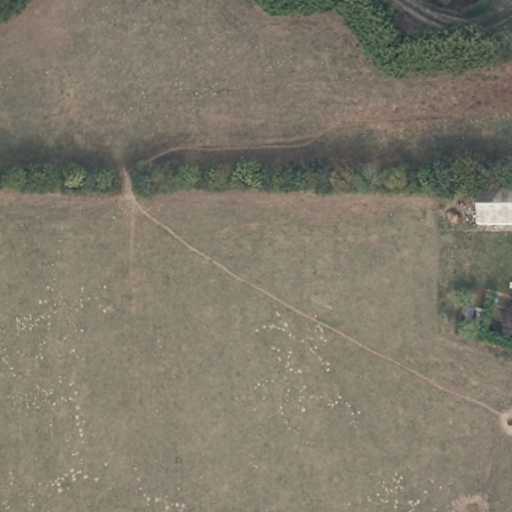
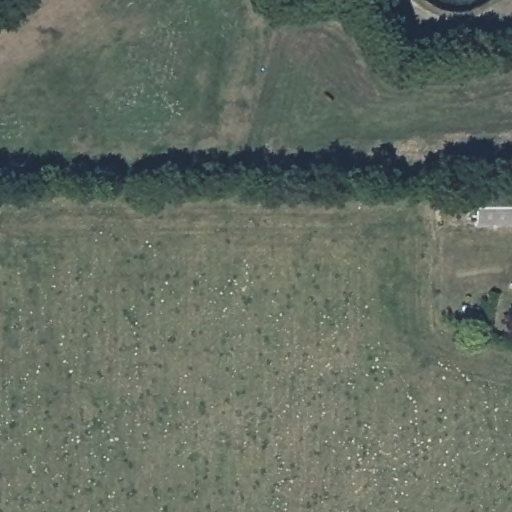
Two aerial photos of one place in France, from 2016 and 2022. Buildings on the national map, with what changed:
unchanged [(476,189),(512,189),(512,224),(477,223),(476,189)]

